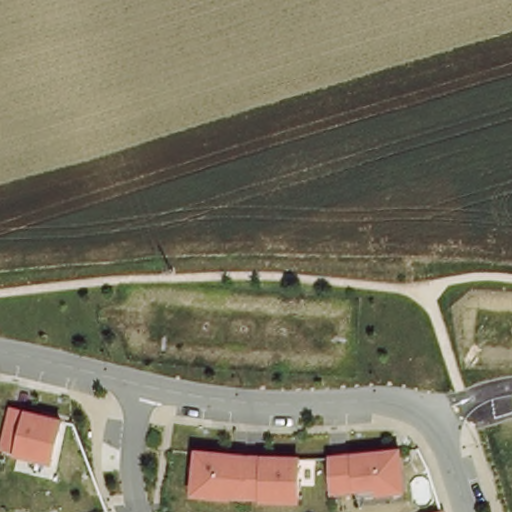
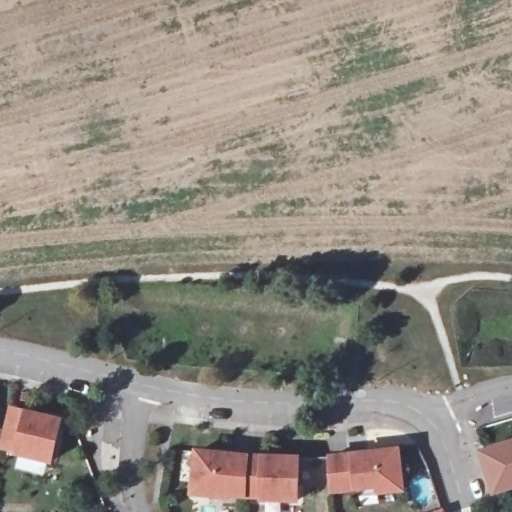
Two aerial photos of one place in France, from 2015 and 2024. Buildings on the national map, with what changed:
unchanged [(65,419),(55,465),(0,449),(11,405),(65,419)]
new [(512,440),(512,490),(496,495),(480,450),(512,440)]
unchanged [(403,447),(407,494),(378,497),(377,491),(331,495),(330,453),(403,447)]
unchanged [(303,505),(259,502),(192,496),(197,449),(253,456),(303,457),(303,505)]
unchanged [(445,511),(445,512),(440,512),(445,511)]

